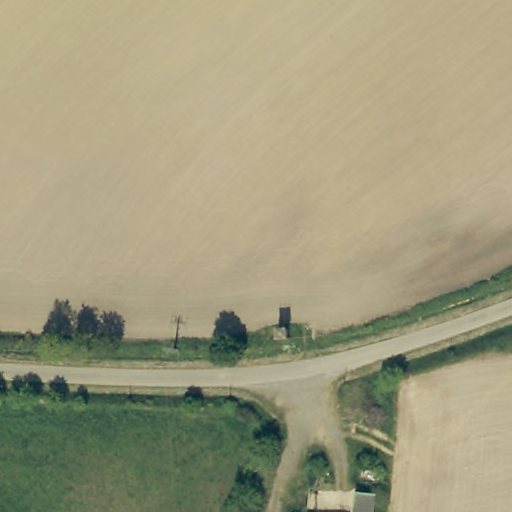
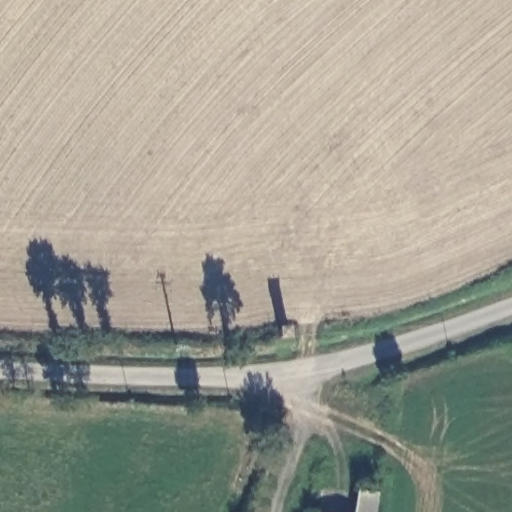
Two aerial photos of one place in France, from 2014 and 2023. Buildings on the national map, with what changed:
unchanged [(303,508),(340,511),(343,485),(368,487),(366,512),(303,512),(303,508)]

